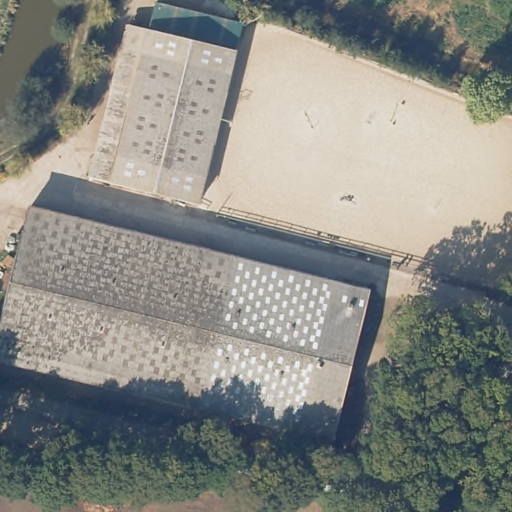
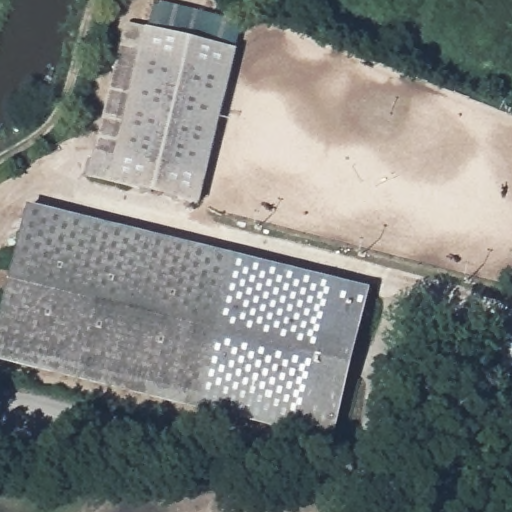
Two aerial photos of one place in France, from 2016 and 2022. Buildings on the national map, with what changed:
unchanged [(132,21),(237,50),(194,200),(85,171),(90,151),(94,152),(108,100),(110,94),(117,68),(132,21)]
unchanged [(175,405),(0,357),(0,318),(30,205),(35,203),(206,250),(206,251),(175,405)]
unchanged [(321,284),(288,435),(175,405),(206,251),(206,250),(322,281),(321,284)]
unchanged [(340,286),(307,440),(288,435),(321,284),(322,281),(340,286)]
unchanged [(370,294),(328,446),(307,440),(340,286),(370,294)]

